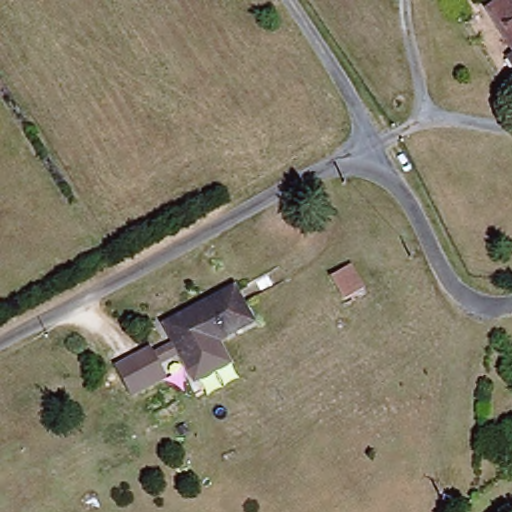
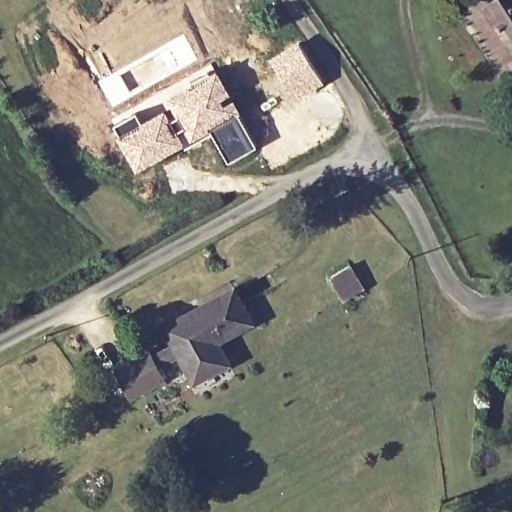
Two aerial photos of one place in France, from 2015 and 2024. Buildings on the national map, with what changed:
unchanged [(510,77),(502,62),(512,57),(485,11),(504,0),(512,0),(512,77),(510,77)]
new [(298,39),(325,81),(297,100),(268,58),(298,39)]
new [(213,64),(229,90),(257,145),(227,164),(209,134),(184,145),(170,116),(173,115),(166,104),(162,97),(213,64)]
new [(117,70),(132,95),(112,105),(97,80),(117,70)]
new [(137,110),(142,118),(166,104),(173,115),(170,116),(184,145),(136,169),(112,123),(137,110)]
unchanged [(337,281),(357,271),(365,289),(369,296),(350,308),(347,298),(337,281)]
unchanged [(235,285),(255,323),(221,342),(232,365),(192,386),(178,358),(160,367),(167,382),(130,400),(112,363),(150,345),(152,351),(170,343),(160,322),(235,285)]

